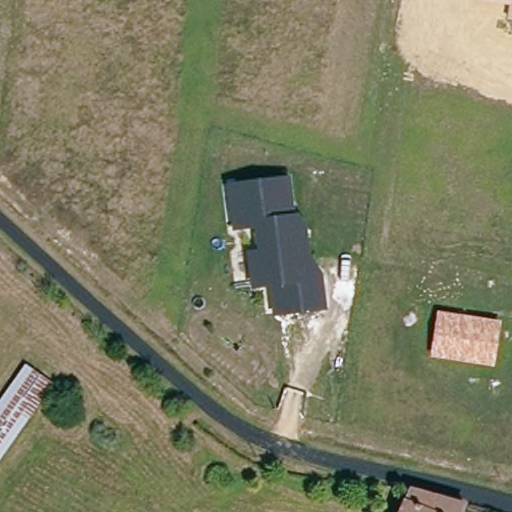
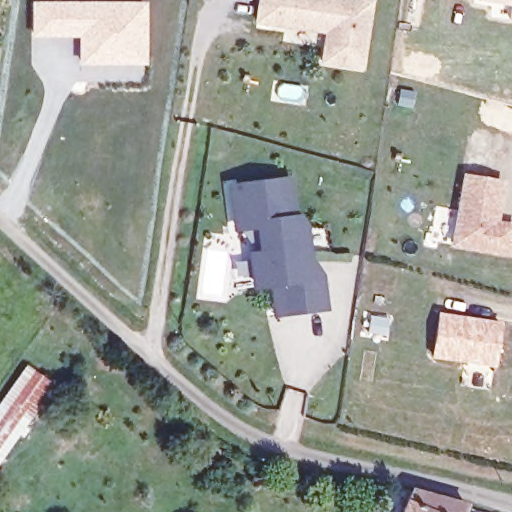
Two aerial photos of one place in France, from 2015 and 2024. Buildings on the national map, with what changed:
new [(30,0),(146,1),(145,64),(78,65),(76,37),(30,36),(30,0)]
new [(353,0),(372,3),(361,69),(323,63),(327,33),(257,22),(261,0),(353,0)]
unchanged [(507,6),(475,1),(475,0),(512,0),(512,21),(506,21),(507,6)]
unchanged [(291,175),(296,211),(306,221),(311,254),(322,270),(326,307),(275,315),(268,286),(252,288),(245,251),(257,248),(254,227),(233,229),(225,181),(291,175)]
new [(462,182),(499,188),(491,229),(510,232),(505,259),(450,250),(462,182)]
unchanged [(429,358),(436,311),(500,322),(493,368),(429,358)]
unchanged [(30,370),(55,389),(0,459),(0,409),(30,370)]
unchanged [(405,484),(468,502),(464,512),(396,512),(401,494),(405,484)]

